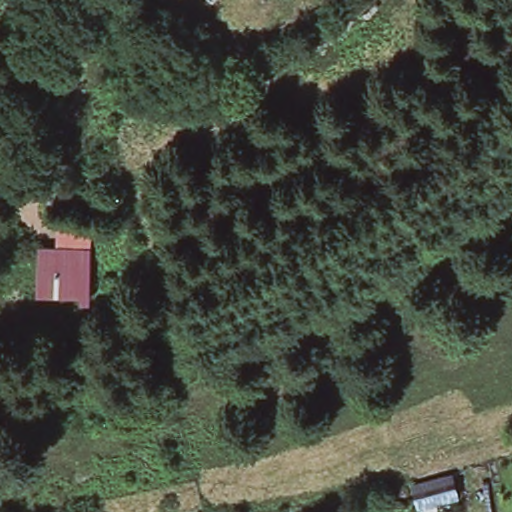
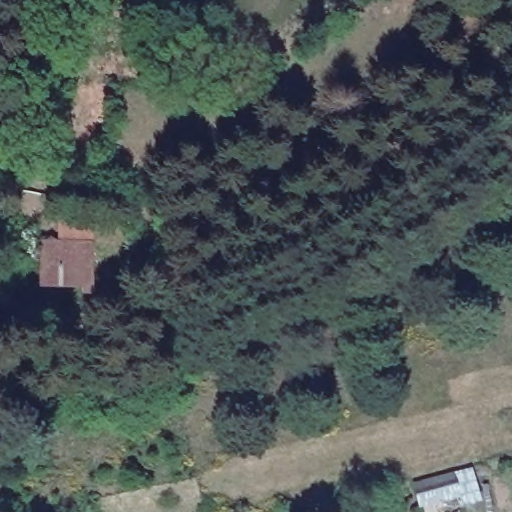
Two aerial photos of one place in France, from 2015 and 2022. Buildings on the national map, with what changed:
unchanged [(85,243),(84,286),(37,285),(38,243),(85,243)]
unchanged [(455,474),(460,496),(420,506),(415,485),(455,474)]
unchanged [(396,511),(396,512),(392,512),(396,511)]

